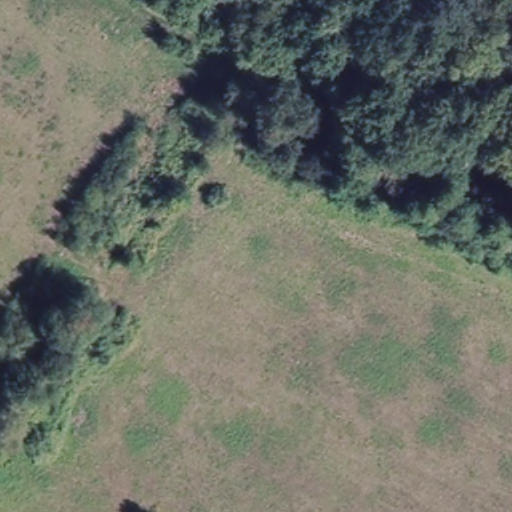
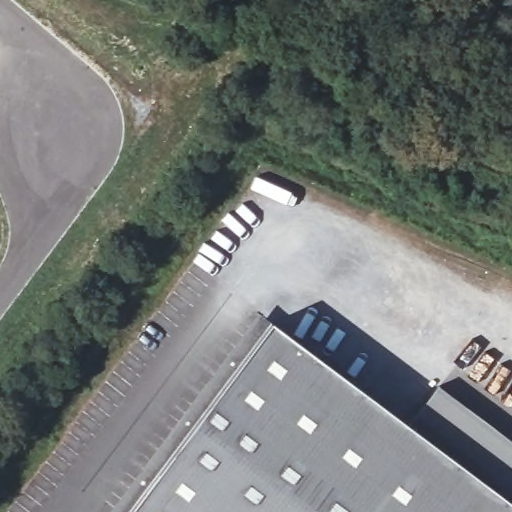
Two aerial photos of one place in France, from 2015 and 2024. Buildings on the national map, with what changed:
new [(512,512),(128,512),(267,323),(405,425),(436,387),(512,444),(512,512)]

